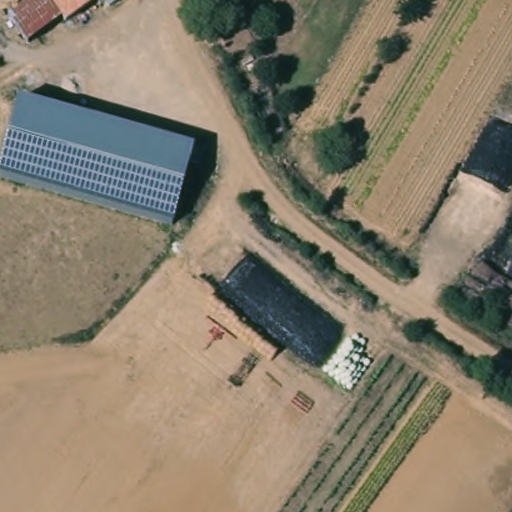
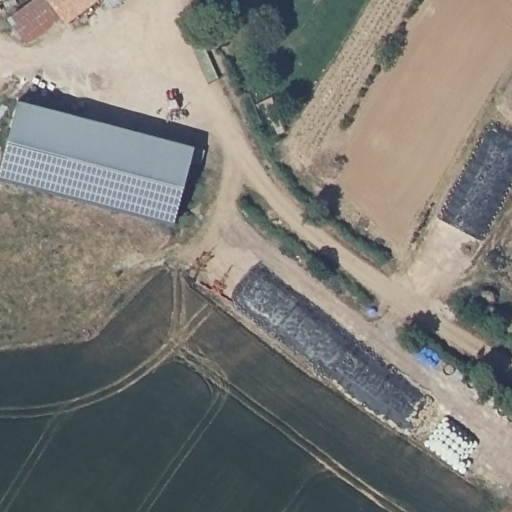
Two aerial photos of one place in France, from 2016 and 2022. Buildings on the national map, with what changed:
unchanged [(10,13),(24,3),(28,0),(103,0),(48,40),(36,48),(10,13)]
unchanged [(28,0),(24,3),(21,0),(28,0)]
unchanged [(19,101),(194,148),(174,224),(0,179),(0,171),(19,101)]

